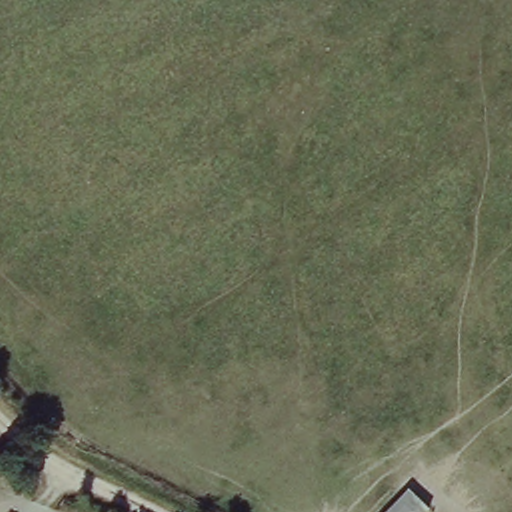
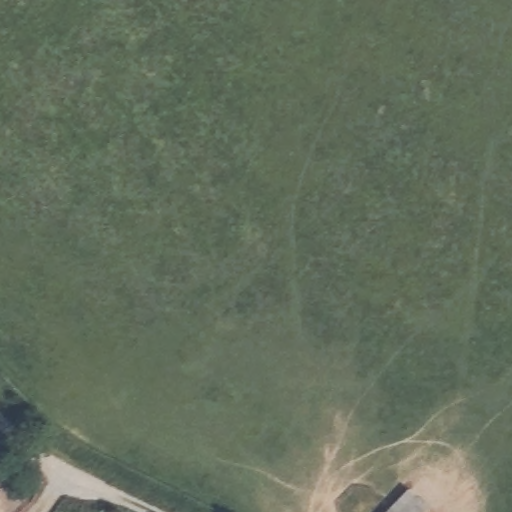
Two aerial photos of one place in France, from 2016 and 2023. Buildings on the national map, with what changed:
unchanged [(426,512),(379,512),(410,483),(431,506),(426,512)]

